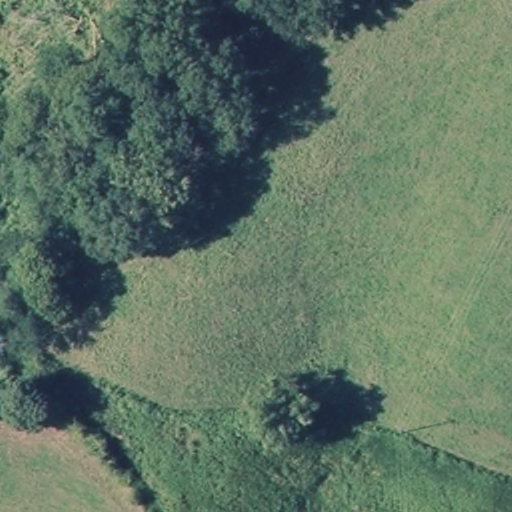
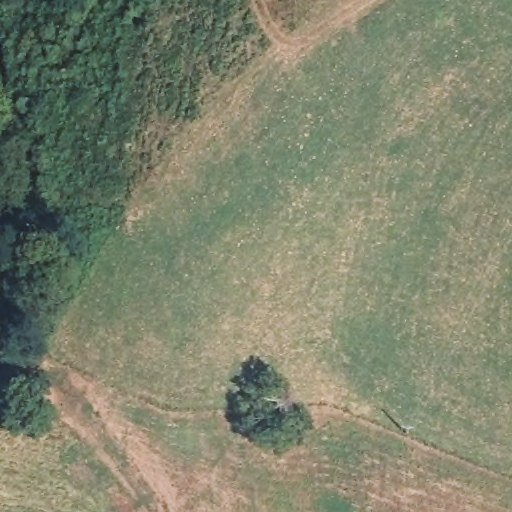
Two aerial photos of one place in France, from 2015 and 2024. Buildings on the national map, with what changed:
[]

